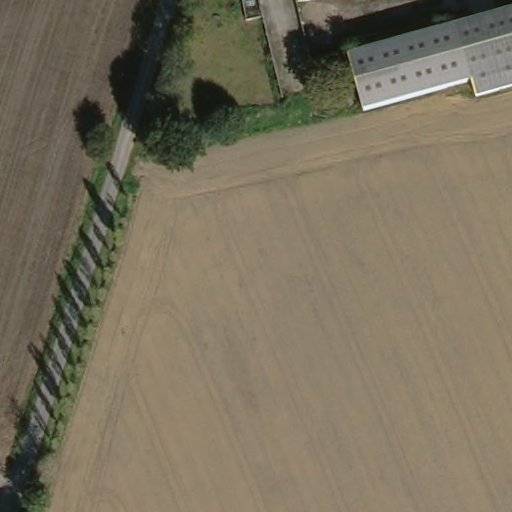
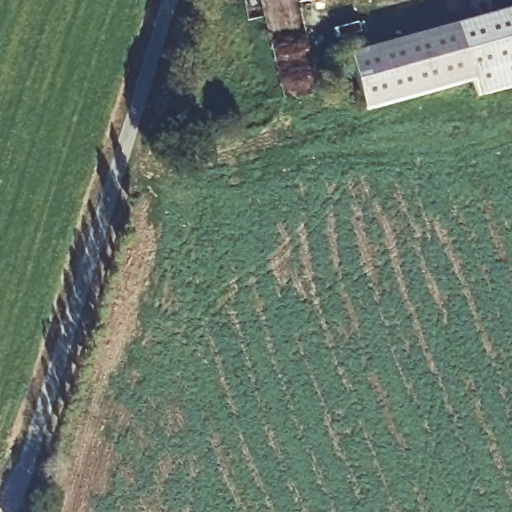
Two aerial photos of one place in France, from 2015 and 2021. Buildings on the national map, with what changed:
unchanged [(512,94),(475,103),(471,86),(363,113),(353,73),(350,58),(389,49),(512,19),(512,94)]

